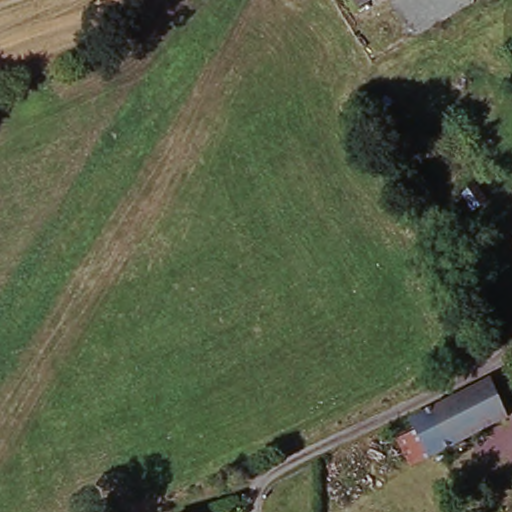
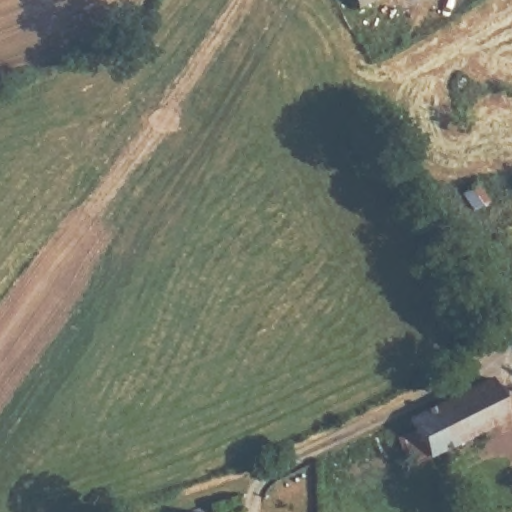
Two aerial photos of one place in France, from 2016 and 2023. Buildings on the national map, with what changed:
unchanged [(356,10),(350,0),(373,0),(356,10)]
unchanged [(477,185),(490,209),(477,217),(462,194),(477,185)]
unchanged [(490,379),(507,417),(429,456),(411,420),(490,379)]

